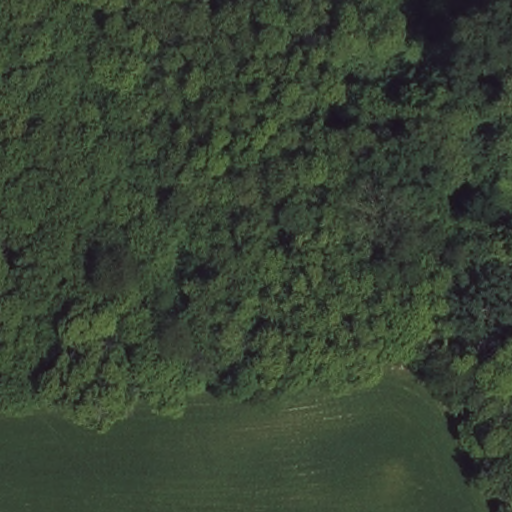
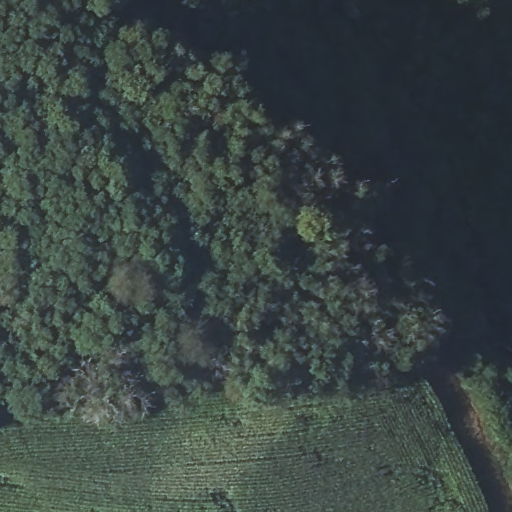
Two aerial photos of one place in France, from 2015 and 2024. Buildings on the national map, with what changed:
[]

